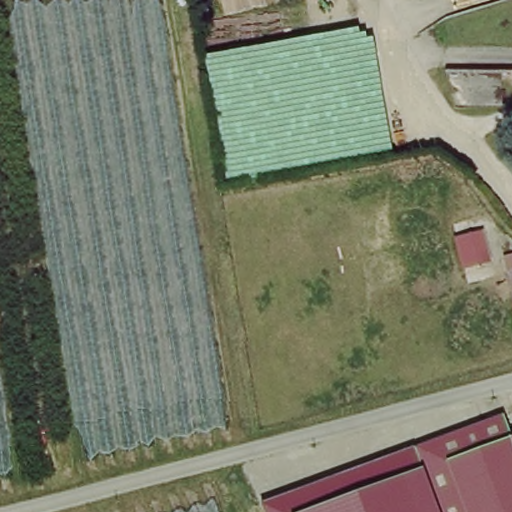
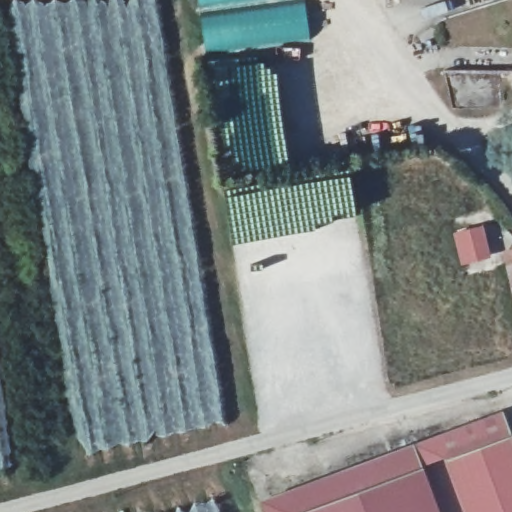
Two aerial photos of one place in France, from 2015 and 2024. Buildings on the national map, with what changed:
new [(198,0),(221,0),(199,3),(198,0)]
new [(304,2),(310,37),(204,52),(200,17),(304,2)]
unchanged [(512,73),(512,81),(511,77),(511,72),(512,73)]
unchanged [(460,267),(452,234),(483,226),(491,260),(460,267)]
unchanged [(512,249),(512,288),(503,251),(512,249)]
unchanged [(512,512),(438,512),(412,439),(495,411),(508,434),(512,432),(512,512)]
unchanged [(412,439),(438,512),(264,512),(259,497),(412,439)]

